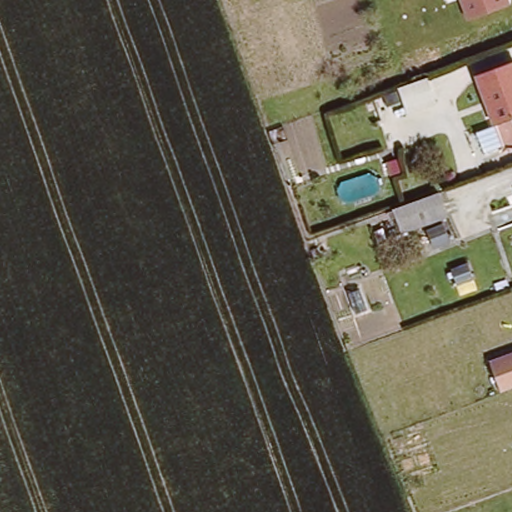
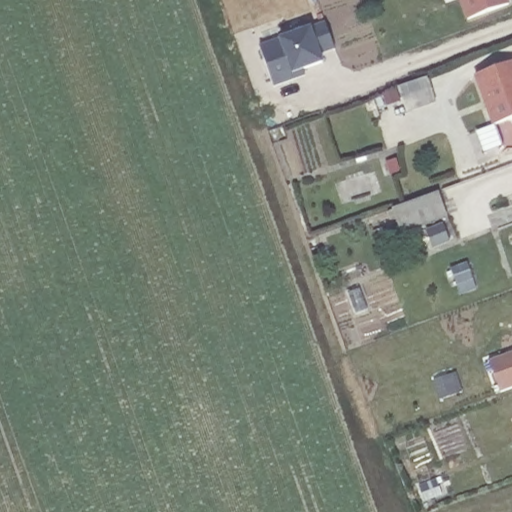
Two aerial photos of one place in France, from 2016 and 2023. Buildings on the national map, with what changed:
unchanged [(461,0),(508,0),(510,4),(467,18),(461,0)]
new [(335,49),(320,55),(323,63),(303,69),(305,76),(274,87),(260,46),(280,42),(279,38),(312,27),(325,22),(335,49)]
unchanged [(512,66),(512,119),(492,126),(472,75),(510,60),(512,66)]
unchanged [(435,101),(407,111),(399,88),(427,78),(435,101)]
unchanged [(406,237),(397,212),(442,196),(451,220),(406,237)]
unchanged [(369,313),(359,317),(351,294),(362,291),(369,313)]
unchanged [(512,352),(512,387),(500,391),(489,360),(512,352)]

